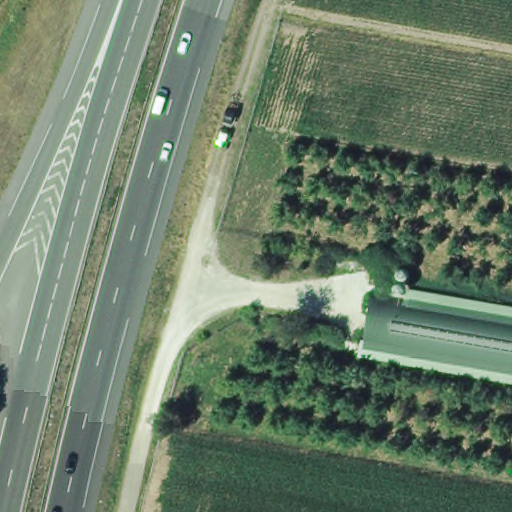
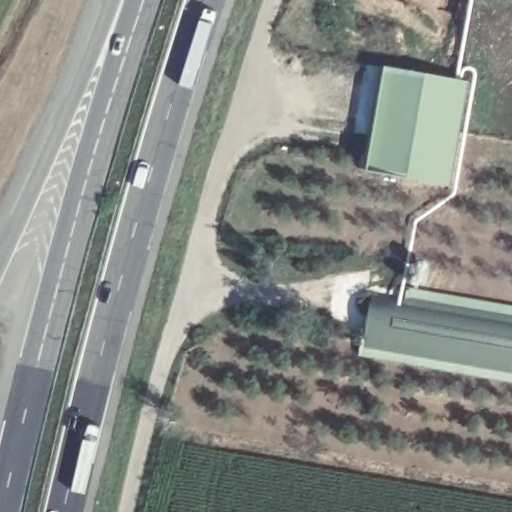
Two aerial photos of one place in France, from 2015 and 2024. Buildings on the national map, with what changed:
new [(387,70),(470,85),(452,187),(365,172),(387,70)]
unchanged [(512,369),(365,343),(372,296),(512,320),(512,369)]

